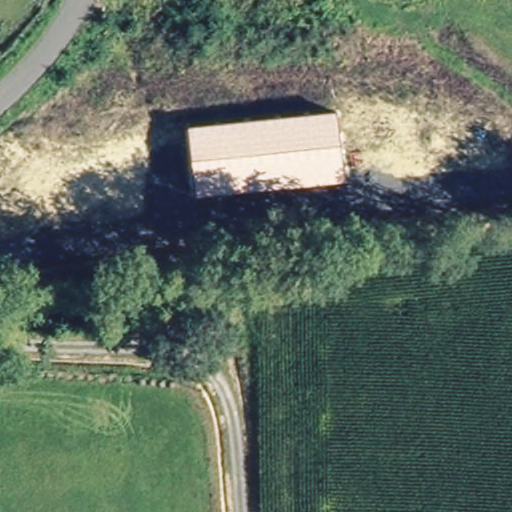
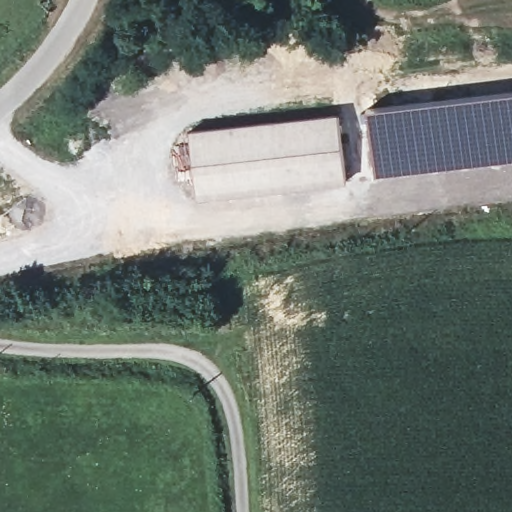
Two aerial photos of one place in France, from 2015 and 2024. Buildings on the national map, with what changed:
new [(512,89),(512,160),(416,173),(375,177),(366,107),(460,95),(512,89)]
unchanged [(336,113),(345,183),(197,199),(187,129),(336,113)]

